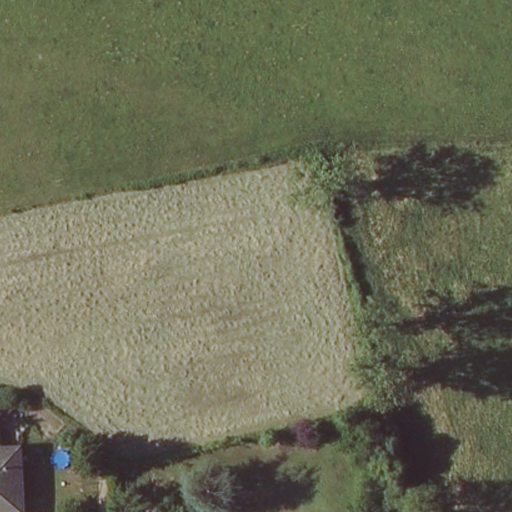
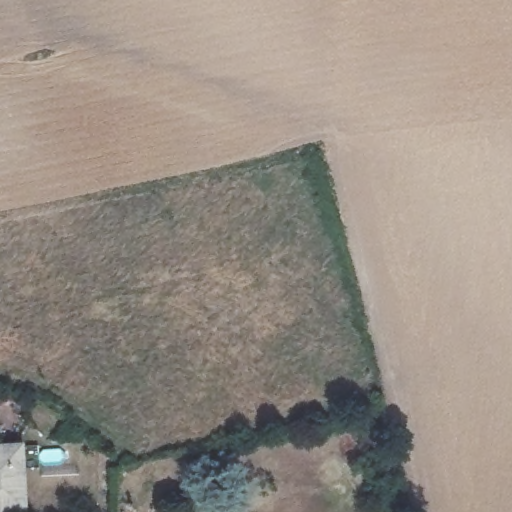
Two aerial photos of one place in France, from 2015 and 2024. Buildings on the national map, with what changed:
unchanged [(23,447),(26,511),(14,512),(0,512),(0,448),(23,447)]

